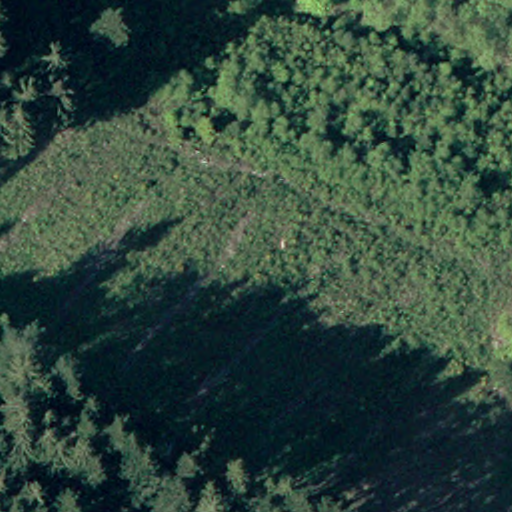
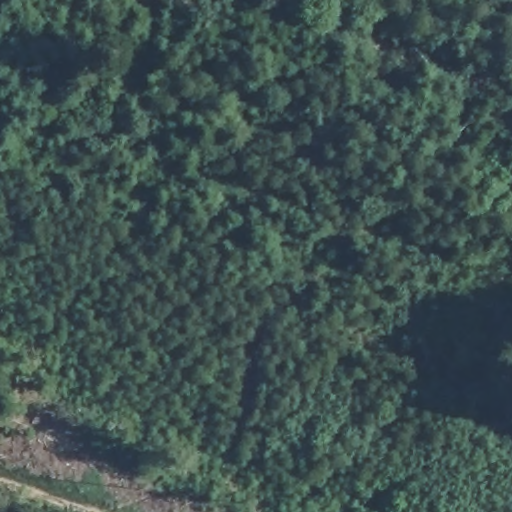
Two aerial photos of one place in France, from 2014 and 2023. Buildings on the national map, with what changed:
[]

